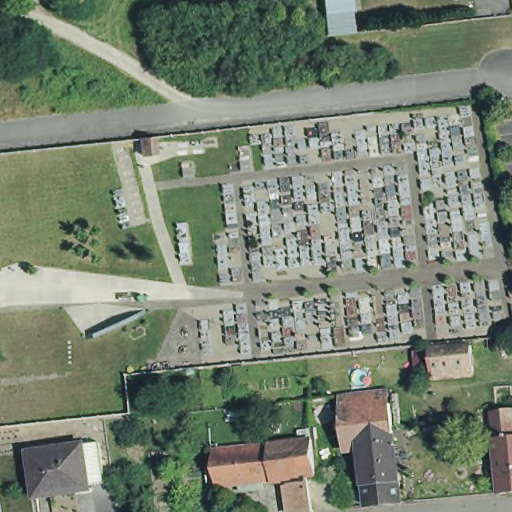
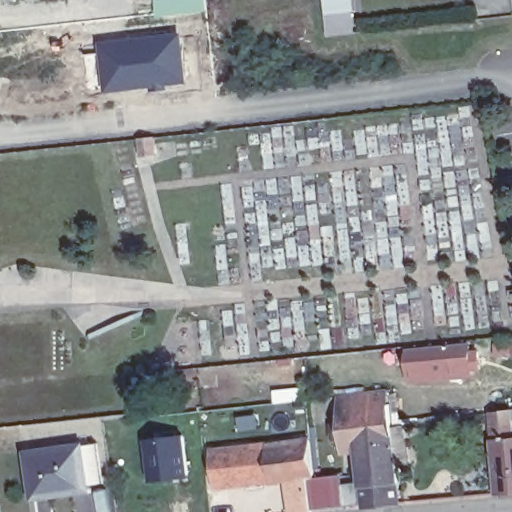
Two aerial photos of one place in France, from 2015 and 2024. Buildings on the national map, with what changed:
unchanged [(322,15),(321,2),(321,0),(350,0),(351,13),(352,18),(322,21),(322,15)]
new [(180,30),(185,82),(105,91),(99,39),(180,30)]
unchanged [(413,360),(492,353),(494,371),(455,375),(455,384),(415,387),(413,360)]
unchanged [(390,448),(358,451),(342,453),(338,420),(337,405),(384,400),(385,415),(387,415),(390,448)]
unchanged [(275,489),(220,496),(215,460),(215,454),(220,454),(222,460),(260,455),(259,447),(272,446),(270,435),(314,430),(318,484),(307,485),(311,512),(292,512),(290,488),(275,489)]
unchanged [(512,430),(512,512),(501,512),(497,458),(495,432),(512,430)]
new [(182,432),(187,475),(147,480),(142,437),(182,432)]
unchanged [(70,494),(29,499),(22,455),(77,448),(92,447),(97,486),(82,487),(82,492),(70,494)]
unchanged [(356,486),(355,477),(360,476),(358,451),(390,448),(394,476),(397,476),(400,476),(404,510),(400,510),(397,510),(397,512),(365,512),(362,485),(356,486)]

